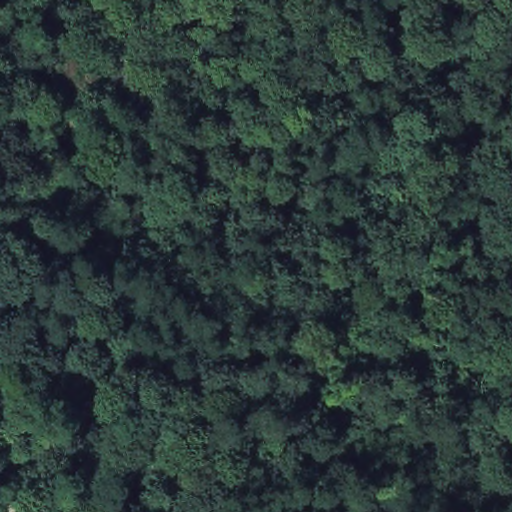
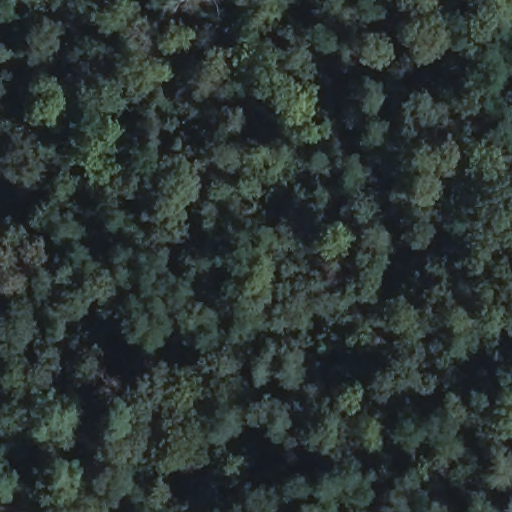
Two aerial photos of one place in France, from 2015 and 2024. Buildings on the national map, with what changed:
[]

